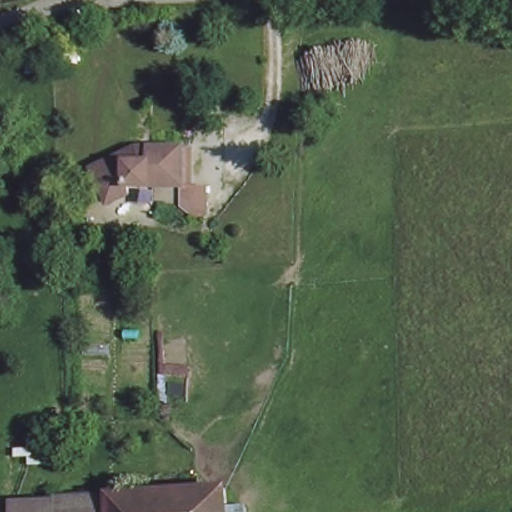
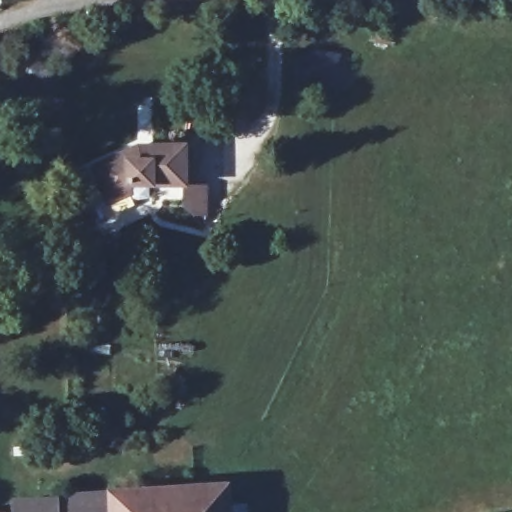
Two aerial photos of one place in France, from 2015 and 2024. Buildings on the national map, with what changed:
unchanged [(131,143),(181,142),(182,178),(126,180),(127,190),(105,197),(90,164),(131,143)]
unchanged [(201,184),(203,209),(191,210),(180,197),(180,184),(201,184)]
unchanged [(226,486),(228,512),(113,512),(111,493),(226,486)]
unchanged [(14,512),(14,511),(15,503),(48,503),(49,497),(92,495),(93,512),(14,512)]

